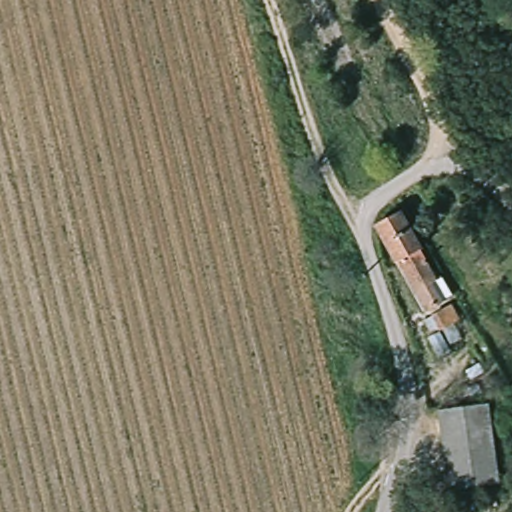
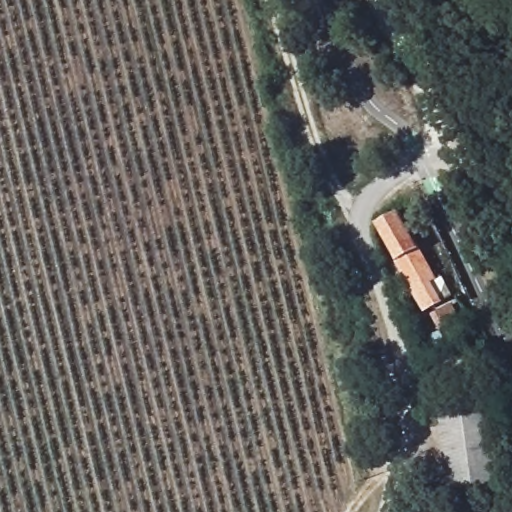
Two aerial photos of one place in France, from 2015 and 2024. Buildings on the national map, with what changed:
unchanged [(446,307),(434,311),(436,318),(430,321),(397,258),(414,247),(446,307)]
unchanged [(491,452),(487,493),(468,493),(446,487),(435,413),(492,413),(491,452)]

